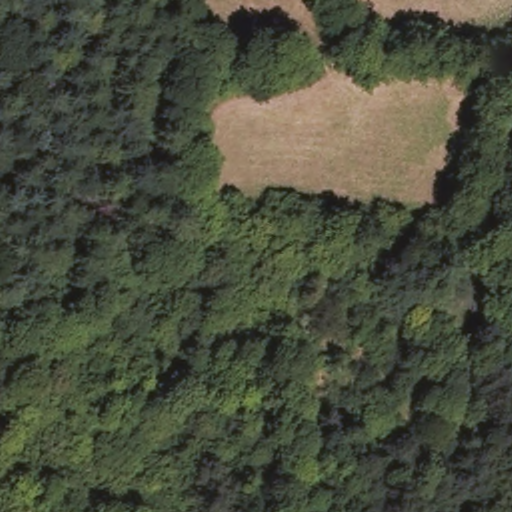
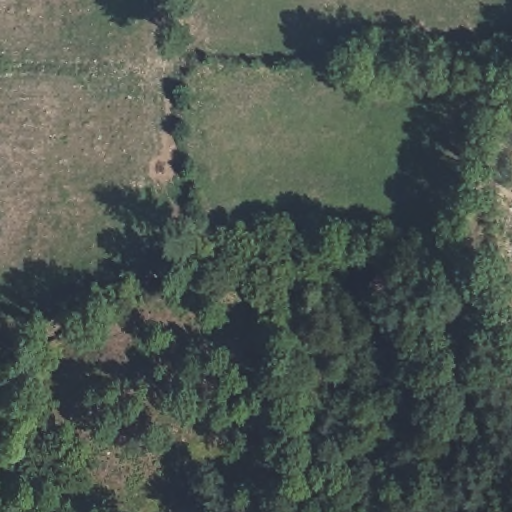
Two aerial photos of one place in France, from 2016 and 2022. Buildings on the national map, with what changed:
unchanged [(381,273),(381,305),(337,305),(338,275),(381,273)]

